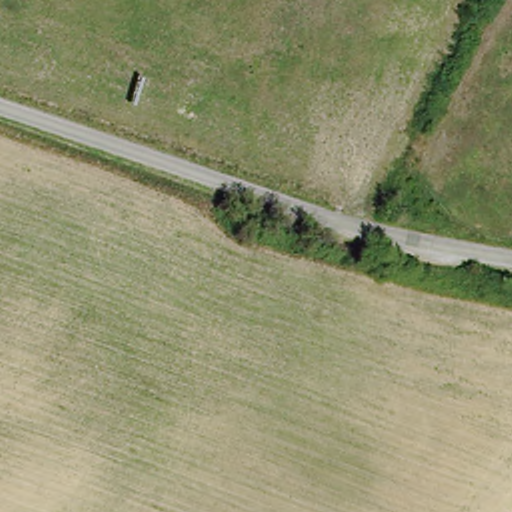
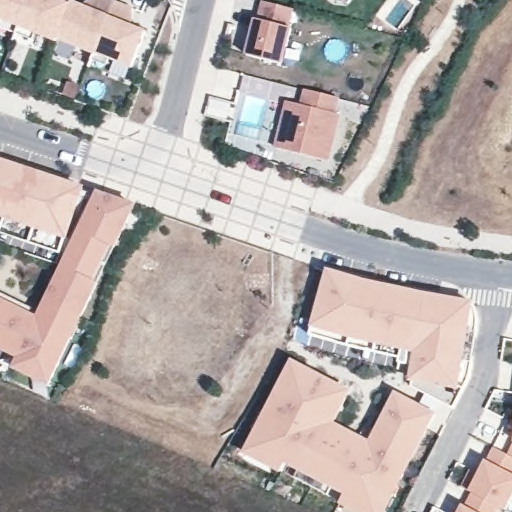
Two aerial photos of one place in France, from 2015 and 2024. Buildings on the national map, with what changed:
new [(17,25),(0,18),(0,0),(26,0),(17,25)]
new [(68,3),(55,36),(54,39),(17,25),(26,0),(60,0),(68,3)]
new [(69,0),(80,5),(86,0),(112,0),(92,51),(55,36),(68,3),(69,0)]
new [(253,17),(256,18),(260,0),(262,0),(290,7),(285,25),(288,26),(279,61),(244,52),(253,17)]
new [(284,100),(299,103),(303,87),(336,96),(332,112),(337,113),(326,159),(272,145),(284,100)]
new [(76,182),(60,230),(0,211),(0,158),(76,182)]
new [(127,200),(43,377),(8,360),(13,350),(0,344),(0,299),(32,313),(92,188),(127,200)]
new [(60,230),(55,247),(0,229),(0,211),(60,230)]
new [(327,270),(368,281),(474,301),(473,306),(476,315),(477,324),(476,335),(469,375),(453,408),(411,387),(413,382),(410,382),(414,353),(350,340),(311,327),(327,270)]
new [(0,298),(0,290),(35,307),(32,313),(0,298)]
new [(353,391),(335,423),(370,441),(395,392),(437,415),(387,512),(353,512),(340,505),(345,495),(285,463),(281,472),(243,453),(291,360),(353,391)]
new [(498,506),(495,512),(459,512),(462,505),(470,493),(462,488),(470,471),(479,475),(486,461),(494,448),(506,455),(512,446),(512,499),(506,510),(498,506)]

